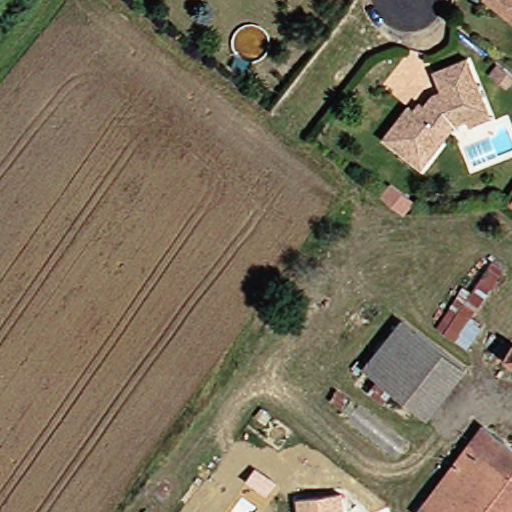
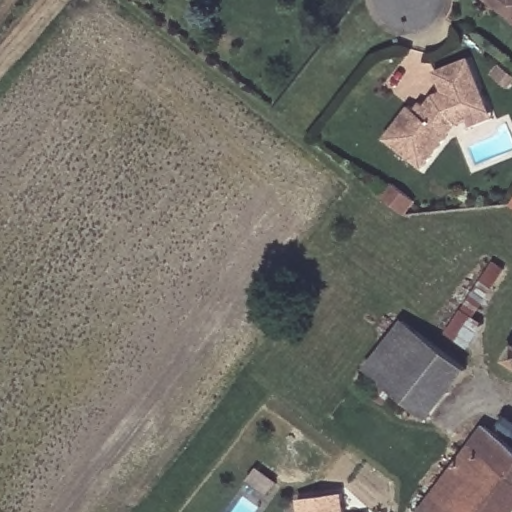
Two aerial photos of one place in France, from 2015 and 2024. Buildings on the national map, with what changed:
unchanged [(512,0),(512,15),(493,0),(512,0)]
unchanged [(473,122),(471,117),(458,122),(451,132),(426,166),(387,135),(412,103),(417,107),(423,99),(428,102),(435,92),(446,88),(437,69),(472,55),(491,102),(495,113),(473,122)]
unchanged [(501,74),(497,71),(502,64),(507,67),(501,74)]
unchanged [(389,191),(411,209),(401,221),(379,204),(389,191)]
unchanged [(512,197),(512,212),(505,207),(512,197)]
unchanged [(508,273),(462,342),(451,333),(497,265),(508,273)]
unchanged [(473,366),(424,428),(362,378),(412,317),(473,366)]
unchanged [(512,370),(506,366),(512,357),(512,370)]
unchanged [(485,430),(512,450),(512,512),(422,512),(485,430)]
unchanged [(300,502),(344,496),(346,512),(301,512),(300,502)]

